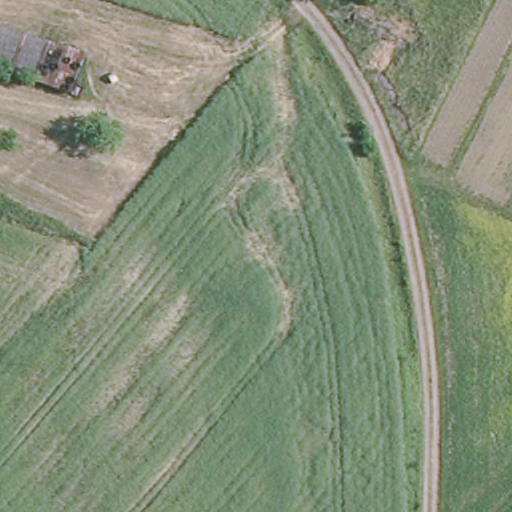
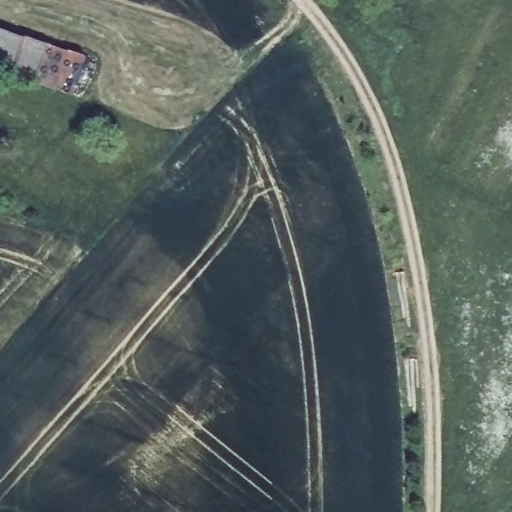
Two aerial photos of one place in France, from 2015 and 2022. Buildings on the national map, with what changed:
unchanged [(80,51),(65,89),(0,68),(0,26),(80,51)]

